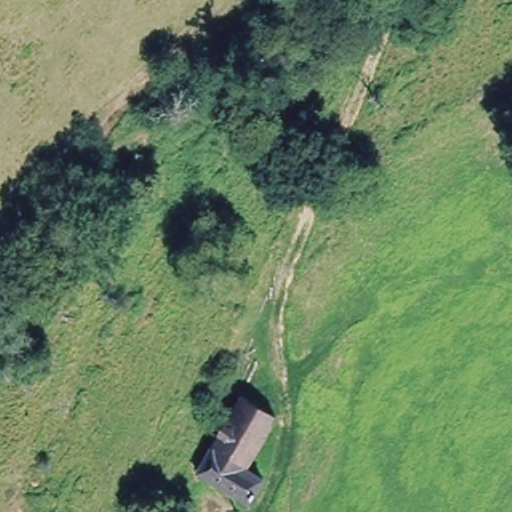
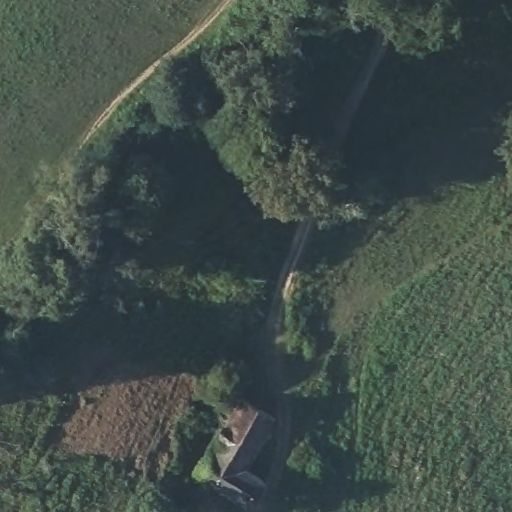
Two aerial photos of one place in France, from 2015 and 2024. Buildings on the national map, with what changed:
unchanged [(257,468),(273,478),(254,512),(249,512),(200,484),(241,400),(278,424),(257,468)]

